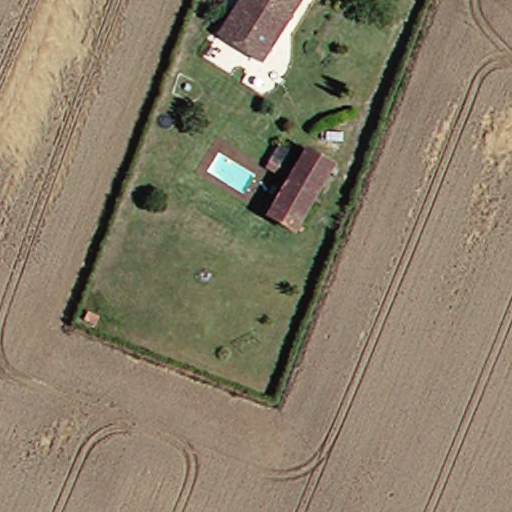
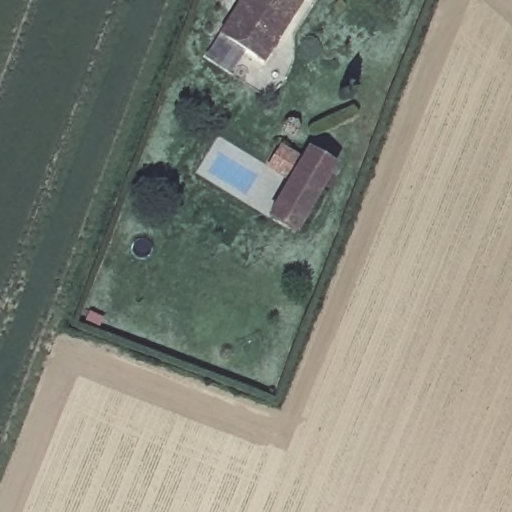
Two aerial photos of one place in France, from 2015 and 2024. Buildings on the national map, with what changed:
unchanged [(206,33),(222,4),(241,14),(248,0),(305,0),(263,69),(206,33)]
unchanged [(278,172),(295,182),(343,94),(371,110),(368,115),(335,173),(303,233),(276,217),(288,194),(271,185),(278,172)]

